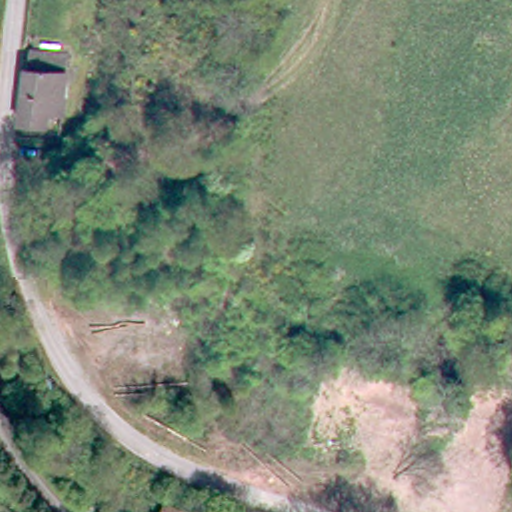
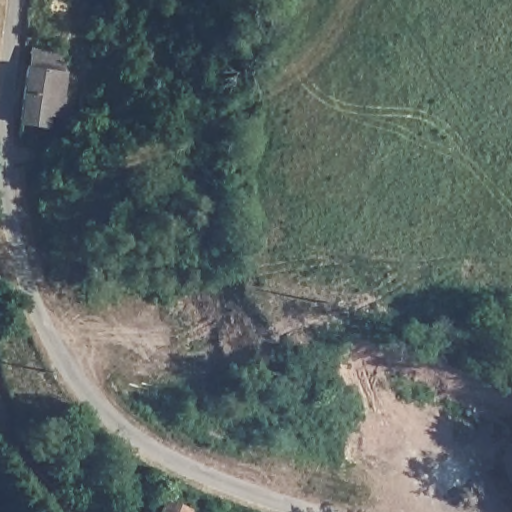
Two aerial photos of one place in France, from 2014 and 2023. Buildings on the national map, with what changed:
unchanged [(65,111),(50,110),(48,123),(23,121),(32,55),(27,54),(27,48),(70,54),(65,111)]
unchanged [(192,509),(191,512),(155,512),(164,494),(192,509)]

